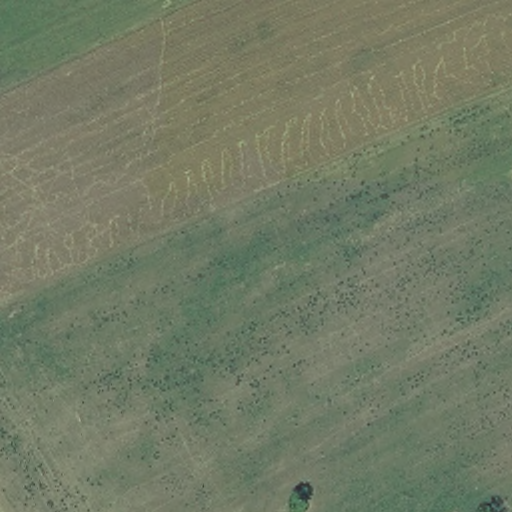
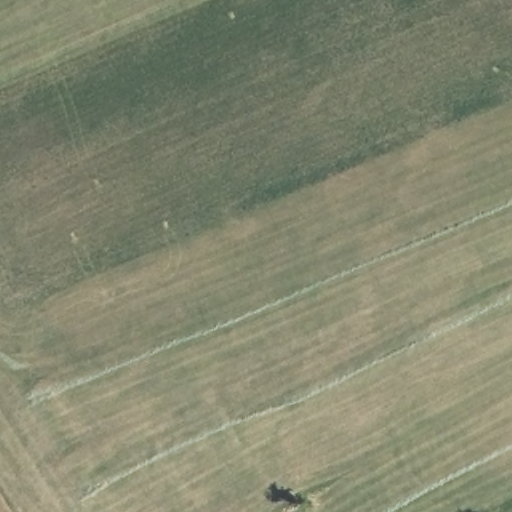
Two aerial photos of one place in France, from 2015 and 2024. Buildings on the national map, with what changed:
[]

